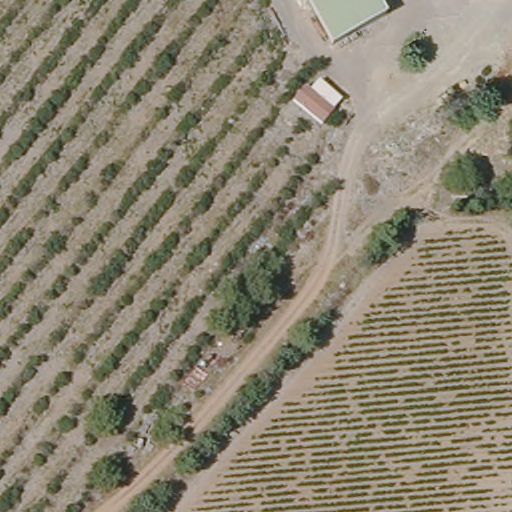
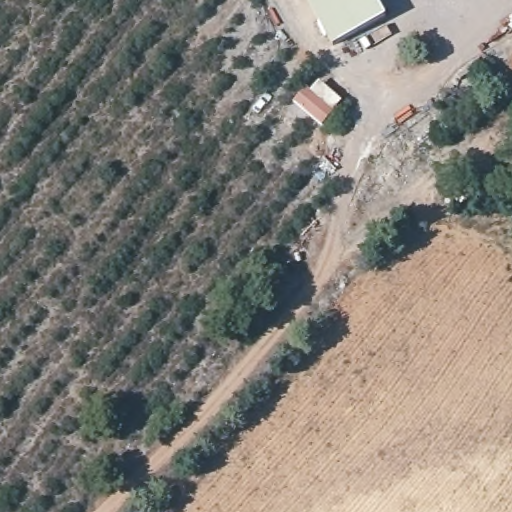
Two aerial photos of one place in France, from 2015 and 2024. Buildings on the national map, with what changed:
unchanged [(329,39),(308,0),(377,0),(386,16),(329,39)]

